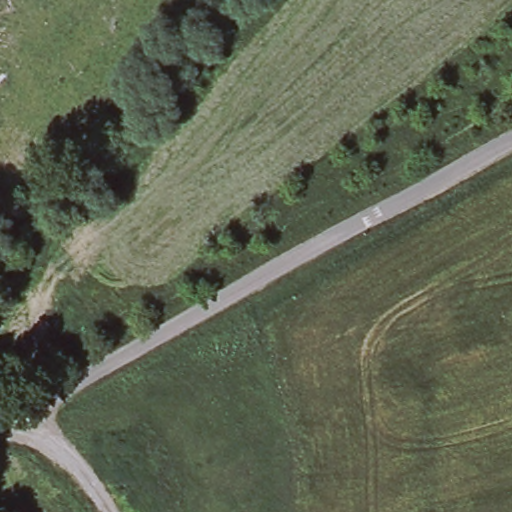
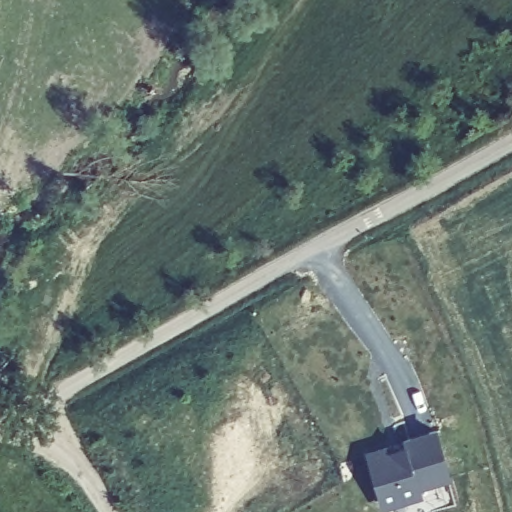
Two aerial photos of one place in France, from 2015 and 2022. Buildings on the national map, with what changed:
new [(436,429),(451,481),(420,490),(423,497),(381,509),(365,451),(436,429)]

